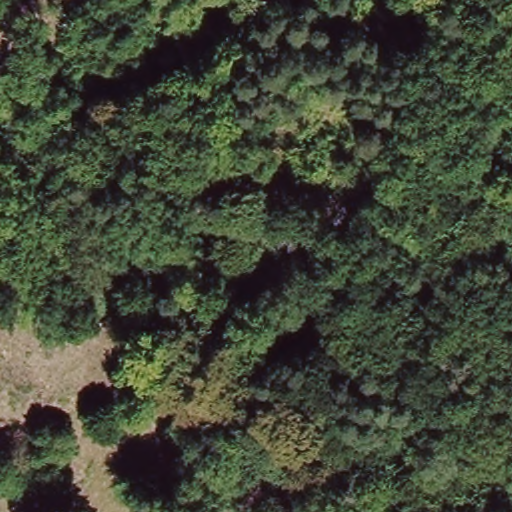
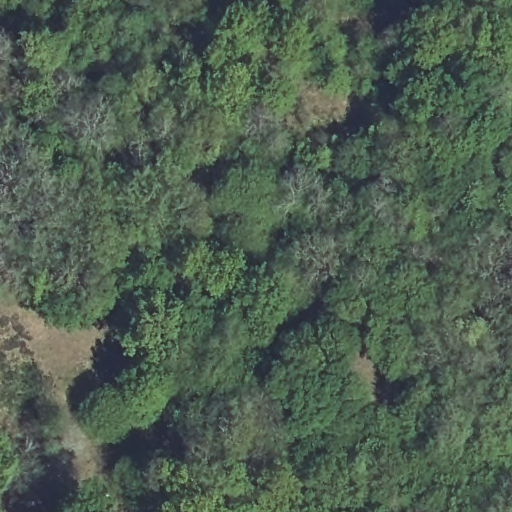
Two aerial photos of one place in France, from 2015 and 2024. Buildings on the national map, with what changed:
unchanged [(377,503),(371,512),(359,502),(366,494),(377,503)]

